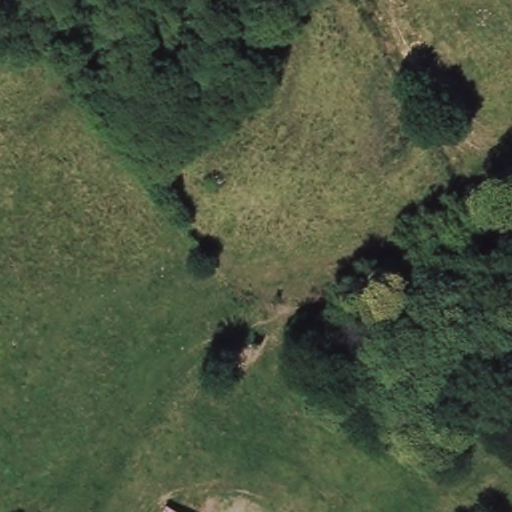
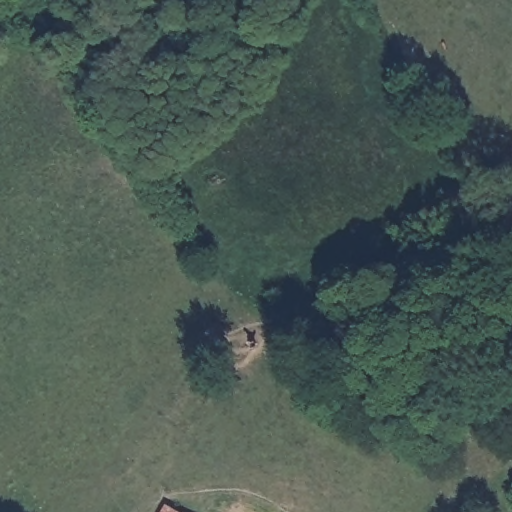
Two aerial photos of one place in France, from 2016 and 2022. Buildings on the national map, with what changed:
unchanged [(182,512),(166,512),(170,505),(182,512)]

